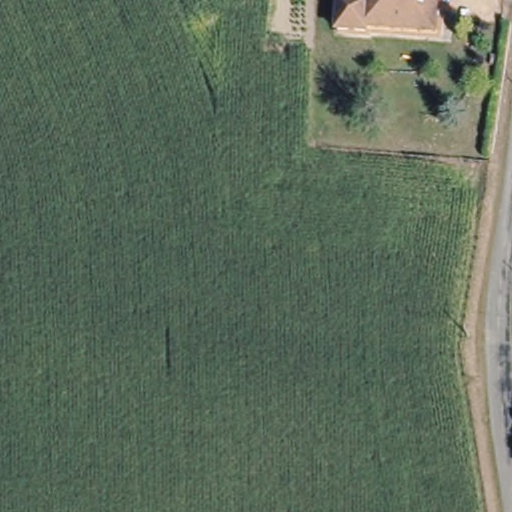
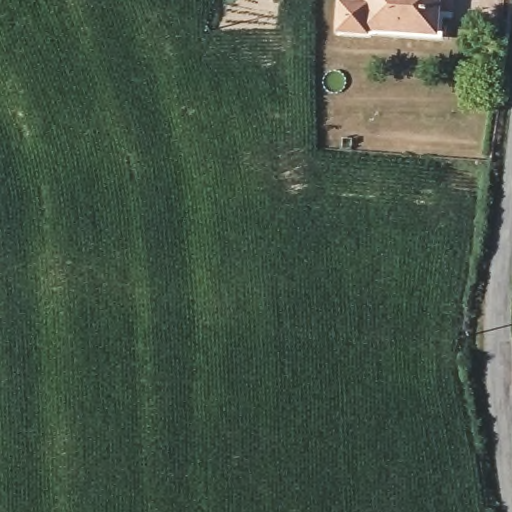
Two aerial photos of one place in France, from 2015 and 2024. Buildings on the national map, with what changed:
unchanged [(439,35),(370,30),(370,34),(344,32),(345,3),(374,6),(374,0),(442,0),(439,35)]

